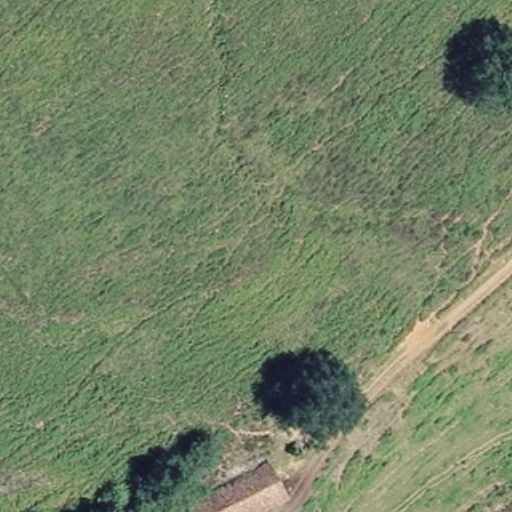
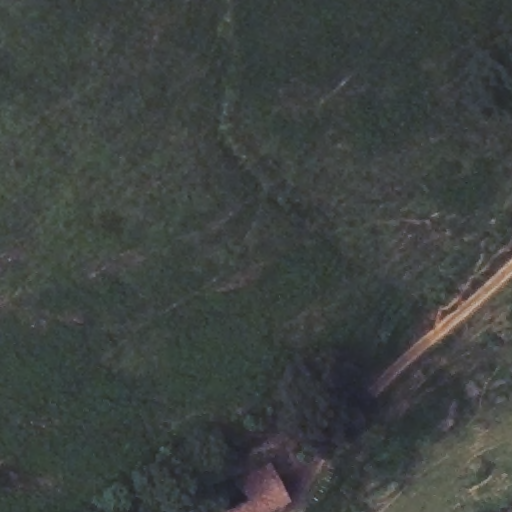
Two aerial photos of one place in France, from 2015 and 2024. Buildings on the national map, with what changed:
unchanged [(276,470),(289,501),(262,512),(193,512),(191,506),(276,470)]

